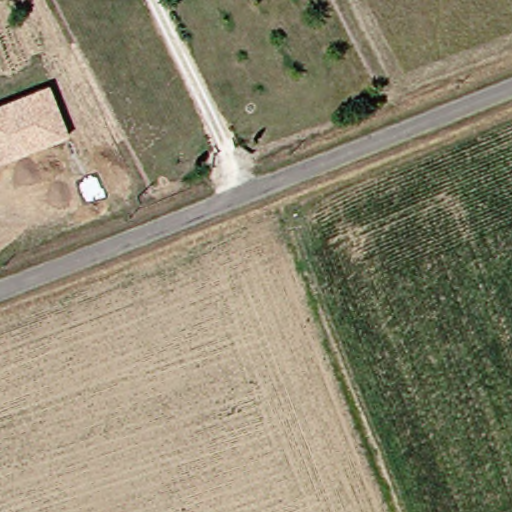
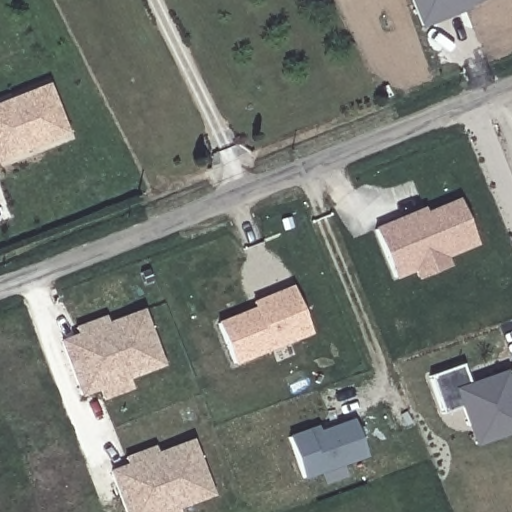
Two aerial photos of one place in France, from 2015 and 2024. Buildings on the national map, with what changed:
new [(418,32),(404,0),(494,0),(418,32)]
unchanged [(49,85),(69,136),(0,162),(0,104),(49,85)]
new [(416,280),(412,271),(390,280),(370,232),(411,216),(421,212),(423,217),(455,203),(473,245),(440,259),(443,268),(416,280)]
new [(308,337),(229,368),(211,325),(249,310),(246,305),(288,288),(308,337)]
new [(100,400),(96,390),(80,396),(60,343),(76,337),(74,330),(104,319),(106,326),(140,313),(160,367),(126,380),(130,388),(100,400)]
new [(455,413),(437,419),(423,380),(458,367),(465,386),(508,371),(505,362),(512,360),(512,437),(470,452),(455,413)]
new [(364,460),(301,483),(284,440),(315,428),(316,433),(350,422),(364,460)]
new [(123,512),(109,472),(125,466),(128,471),(155,462),(154,455),(188,442),(208,495),(173,508),(175,508),(176,512),(123,512)]
new [(154,455),(155,462),(128,471),(122,459),(152,448),(155,455),(154,455)]

